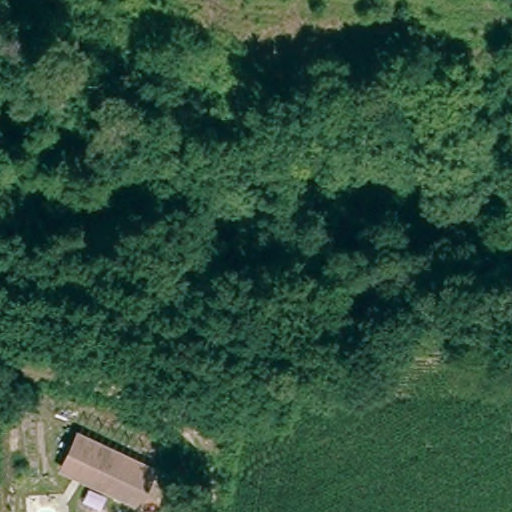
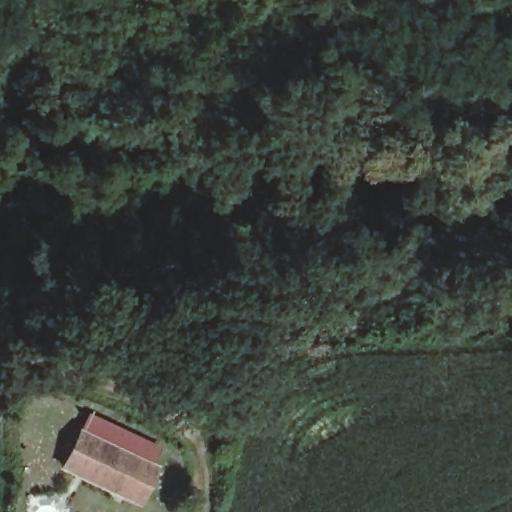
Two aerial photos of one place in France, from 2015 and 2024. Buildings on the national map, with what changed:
unchanged [(155,454),(144,491),(62,467),(74,429),(155,454)]

